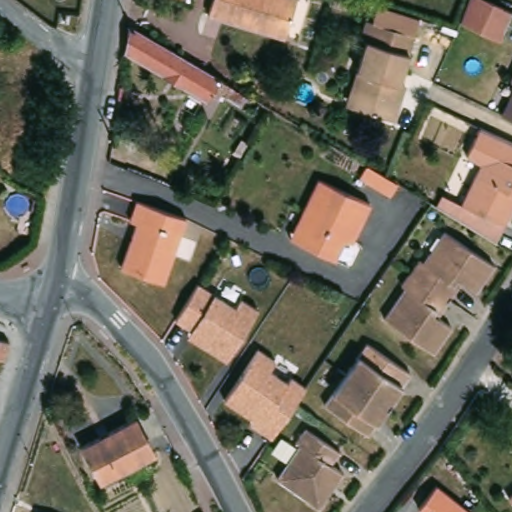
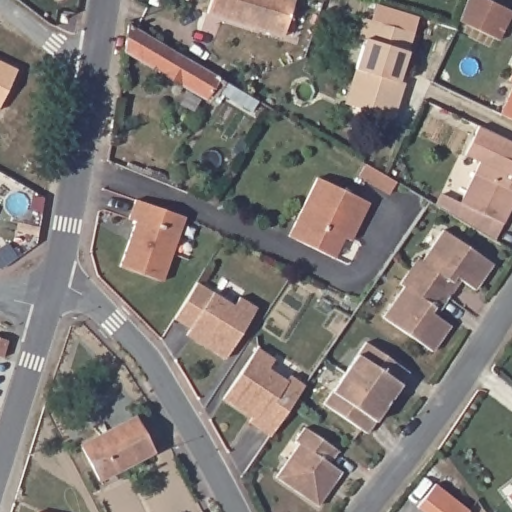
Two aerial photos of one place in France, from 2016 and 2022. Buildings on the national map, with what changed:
unchanged [(165,0),(180,0),(179,4),(165,0)]
unchanged [(208,14),(213,0),(297,0),(285,36),(208,14)]
unchanged [(498,45),(463,29),(457,26),(468,0),(477,0),(512,16),(498,45)]
unchanged [(355,74),(364,43),(358,41),(364,21),(369,4),(370,4),(405,15),(417,21),(412,39),(397,88),(403,90),(392,125),(350,110),(344,109),(355,74)]
unchanged [(181,101),(188,89),(121,50),(125,24),(223,81),(213,96),(206,93),(203,98),(196,110),(181,101)]
new [(16,69),(0,107),(0,61),(16,69)]
unchanged [(512,118),(503,114),(512,95),(512,118)]
unchanged [(512,212),(470,192),(490,151),(475,144),(490,114),(512,125),(512,212)]
unchanged [(390,199),(361,178),(367,168),(368,165),(387,179),(397,187),(396,189),(390,199)]
unchanged [(299,230),(323,180),(375,207),(356,244),(350,240),(340,260),(303,244),(295,240),(299,230)]
unchanged [(470,192),(512,212),(512,218),(505,233),(471,212),(445,196),(452,184),(470,192)]
unchanged [(189,221),(166,285),(123,270),(140,225),(133,223),(140,204),(189,221)]
unchanged [(434,315),(449,325),(431,352),(382,319),(403,288),(399,285),(417,259),(422,262),(444,232),(492,265),(474,291),(460,281),(447,298),(434,315)]
unchanged [(261,311),(228,363),(173,329),(206,278),(261,311)]
unchanged [(370,431),(326,399),(369,339),(414,369),(370,431)]
unchanged [(261,352),(277,363),(278,363),(271,373),(290,384),(294,379),(294,380),(308,389),(296,406),(272,441),(252,428),(255,423),(226,403),(261,352)]
unchanged [(157,452),(104,476),(87,439),(140,416),(157,452)]
unchanged [(337,468),(313,501),(273,472),(295,439),(292,436),(301,422),(333,447),(325,459),(337,468)]
unchanged [(421,505),(439,486),(469,512),(429,512),(421,505)]
unchanged [(512,493),(512,503),(507,497),(512,493)]
unchanged [(42,507),(59,512),(40,512),(42,507)]

